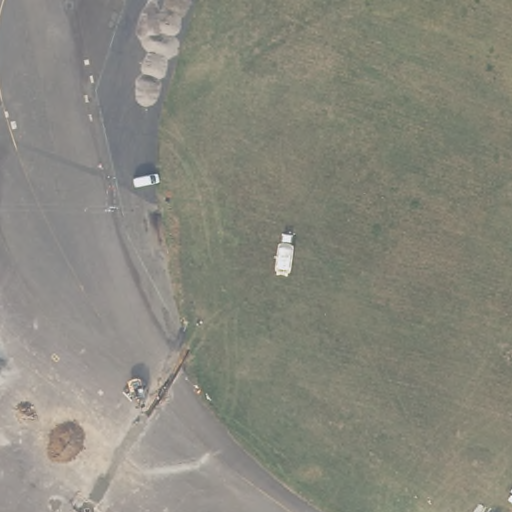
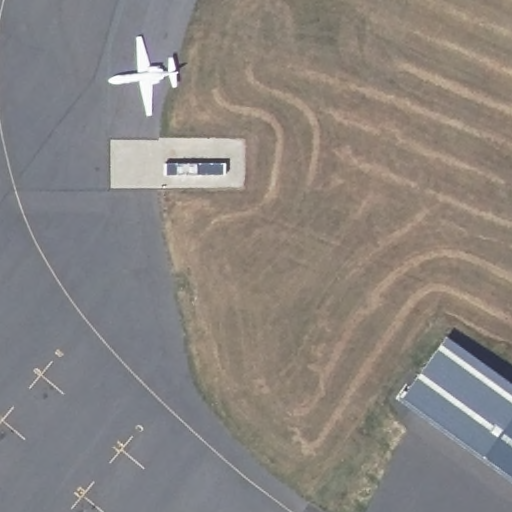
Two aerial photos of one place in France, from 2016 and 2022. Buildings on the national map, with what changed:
new [(512,385),(512,477),(403,397),(446,337),(512,385)]

